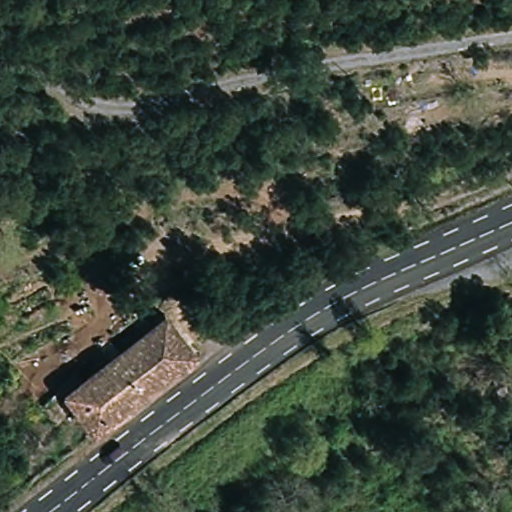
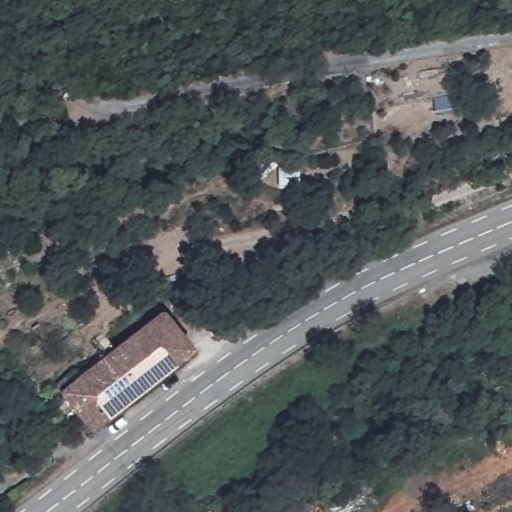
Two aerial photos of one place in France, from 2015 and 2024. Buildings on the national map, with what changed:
unchanged [(62,393),(162,309),(193,345),(91,433),(81,420),(62,393)]

